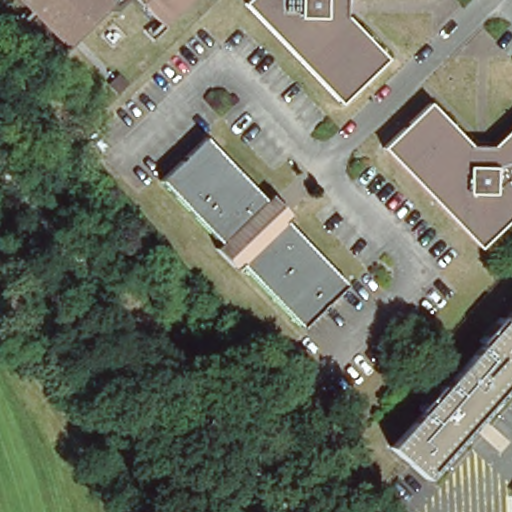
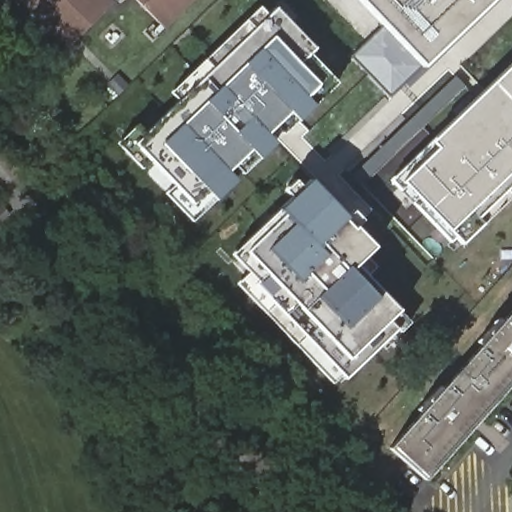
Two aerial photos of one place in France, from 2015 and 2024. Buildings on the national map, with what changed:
unchanged [(79,49),(33,0),(103,0),(115,13),(79,49)]
unchanged [(140,0),(197,0),(167,29),(140,0)]
demolished [(392,59),(345,104),(250,5),(255,0),(355,0),(355,19),(392,59)]
new [(352,55),(390,18),(373,0),(495,0),(392,96),(352,55)]
new [(281,2),(320,44),(310,54),(329,74),(311,90),(320,100),(304,115),(295,105),(272,128),(281,137),(265,153),(256,143),(233,165),(242,174),(221,194),(212,184),(195,200),(137,139),(281,2)]
new [(507,190),(512,195),(483,223),(461,244),(456,238),(450,243),(390,179),(430,141),(512,62),(512,186),(507,190)]
new [(373,174),(365,164),(456,77),(465,86),(373,174)]
demolished [(477,146),(508,150),(512,146),(512,233),(489,257),(391,157),(439,109),(477,146)]
demolished [(270,199),(275,193),(297,217),(292,222),(352,285),(305,332),(245,268),(240,273),(220,250),(224,246),(165,184),(211,138),(270,199)]
new [(292,197),(285,189),(295,180),(302,188),(310,179),(327,198),(345,217),(343,218),(353,228),(355,225),(375,247),(357,263),(400,309),(400,311),(410,322),(400,331),(398,329),(345,379),(340,375),(332,383),(237,283),(249,272),(231,253),(279,209),(292,197)]
unchanged [(445,464),(440,459),(419,483),(386,453),(512,313),(512,390),(445,464)]

